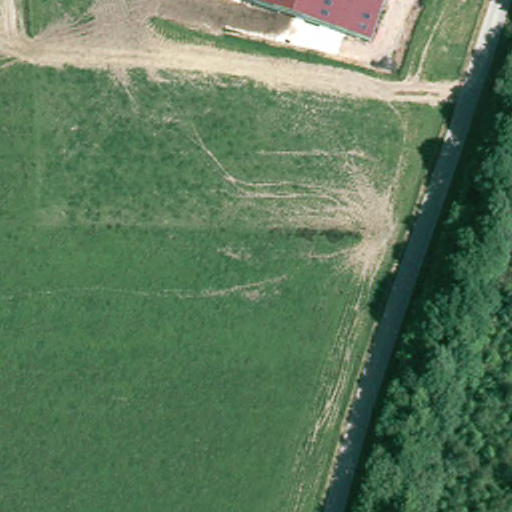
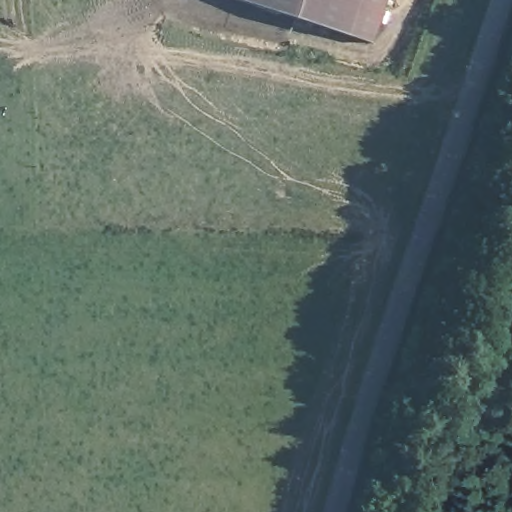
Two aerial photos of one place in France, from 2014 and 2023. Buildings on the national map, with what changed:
unchanged [(367,42),(234,0),(380,0),(367,42)]

